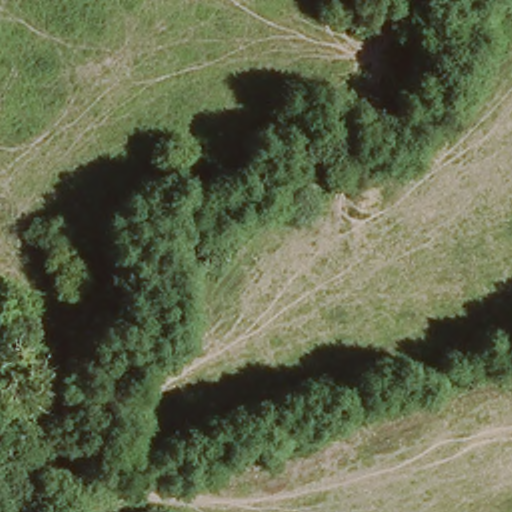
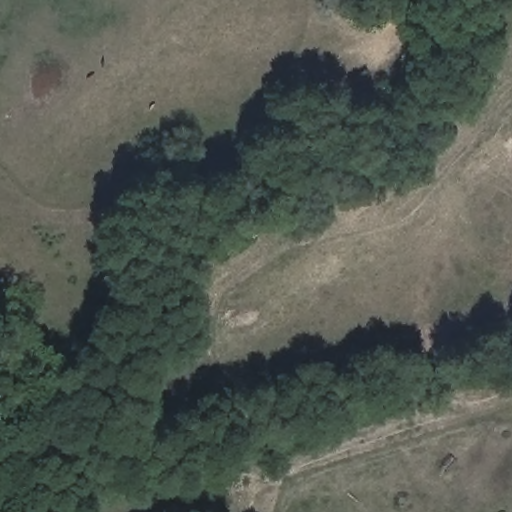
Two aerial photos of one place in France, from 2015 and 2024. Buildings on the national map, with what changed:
[]

